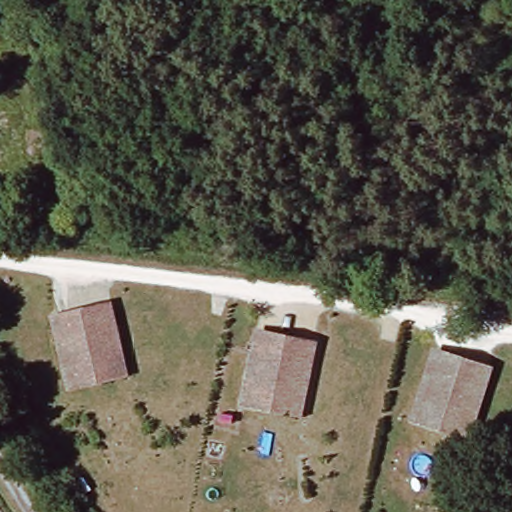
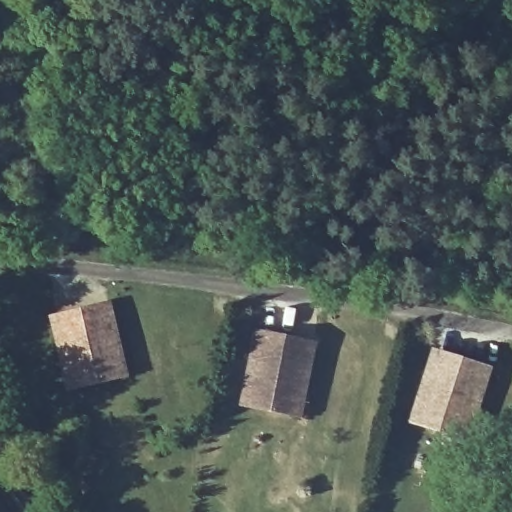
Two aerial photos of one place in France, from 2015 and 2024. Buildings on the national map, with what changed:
unchanged [(104,381),(71,388),(60,338),(55,318),(90,311),(111,306),(123,359),(126,376),(104,381)]
unchanged [(279,409),(247,402),(257,350),(262,331),(295,338),(316,343),(304,397),(301,414),(279,409)]
unchanged [(449,430),(417,420),(433,372),(439,352),(473,363),(493,369),(476,421),(470,437),(449,430)]

